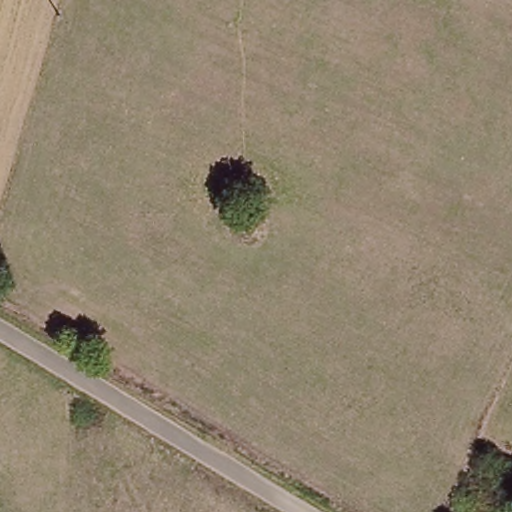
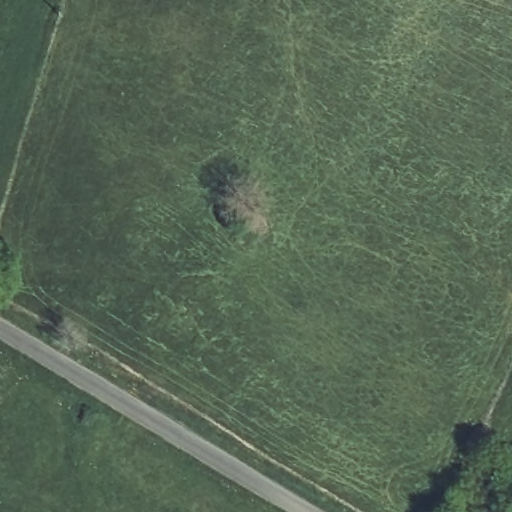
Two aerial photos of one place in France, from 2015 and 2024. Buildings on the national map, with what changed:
[]

